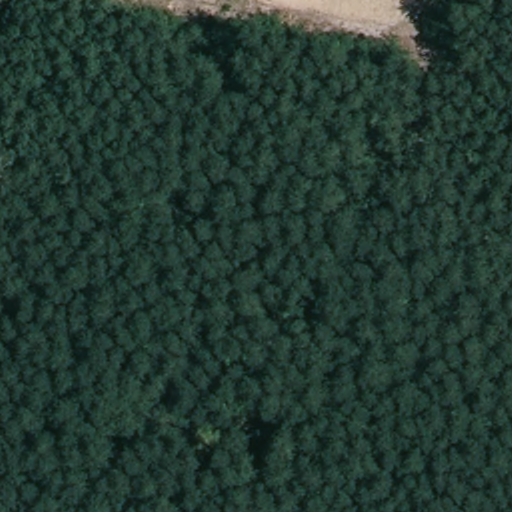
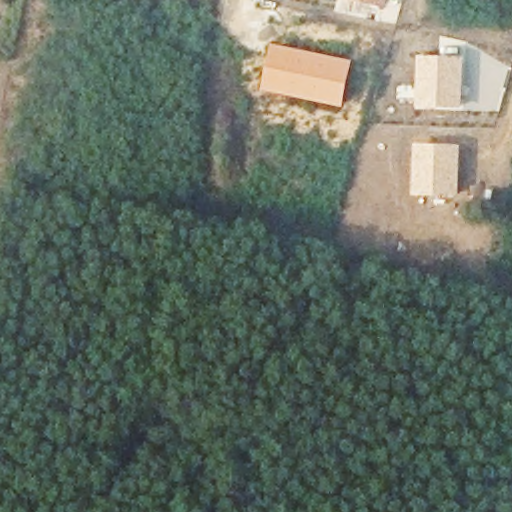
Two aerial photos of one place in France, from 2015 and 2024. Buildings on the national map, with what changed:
new [(385,6),(352,0),(386,0),(385,6)]
new [(268,42),(353,60),(343,108),(259,89),(268,42)]
new [(416,55),(465,55),(462,109),(414,109),(416,55)]
new [(415,143),(461,146),(458,197),(412,194),(415,143)]

